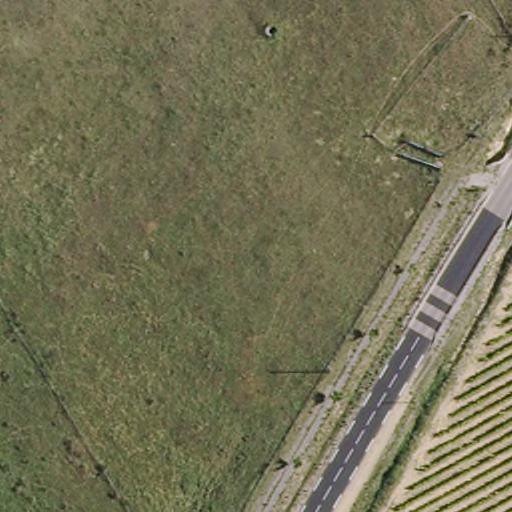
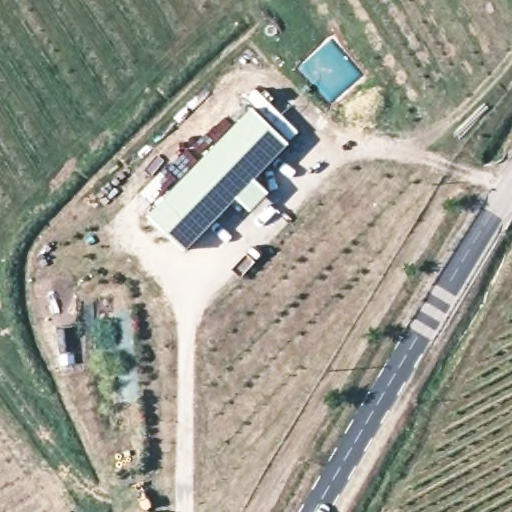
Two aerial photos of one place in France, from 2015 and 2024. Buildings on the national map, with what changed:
new [(255,108),(294,145),(258,181),(271,193),(252,213),(239,200),(189,255),(153,215),(255,108)]

